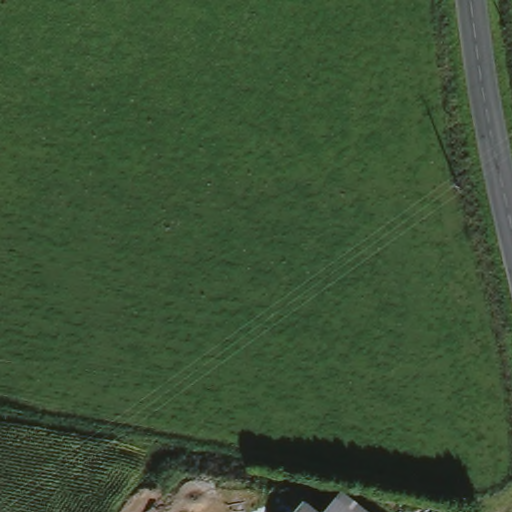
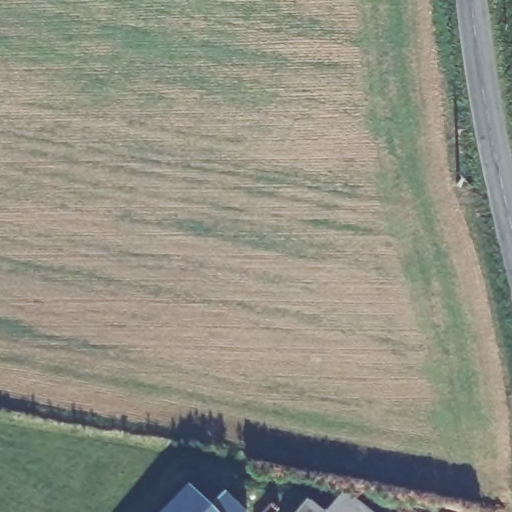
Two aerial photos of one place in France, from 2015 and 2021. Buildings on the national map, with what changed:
new [(187,487),(209,510),(224,495),(242,512),(162,512),(187,487)]
unchanged [(337,493),(361,512),(323,512),(337,493)]
unchanged [(302,503),(313,512),(295,512),(302,503)]

